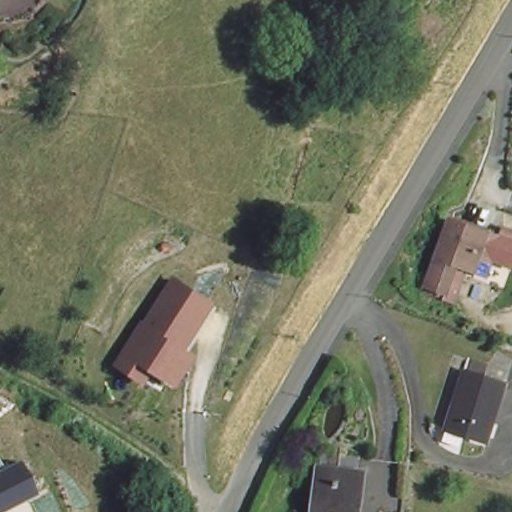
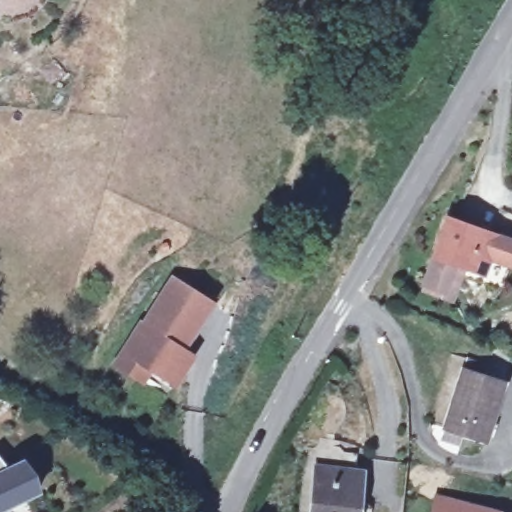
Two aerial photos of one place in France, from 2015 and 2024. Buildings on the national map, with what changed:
unchanged [(502,234),(493,264),(483,261),(476,276),(465,273),(424,261),(442,214),(502,234)]
unchanged [(465,273),(457,306),(417,296),(424,261),(465,273)]
unchanged [(178,388),(147,373),(141,383),(112,367),(167,277),(215,301),(186,348),(198,353),(178,388)]
unchanged [(499,380),(479,437),(439,424),(458,366),(499,380)]
unchanged [(0,512),(0,458),(8,466),(23,459),(40,493),(3,512),(0,512)]
unchanged [(359,510),(358,512),(315,512),(319,474),(321,474),(324,458),(350,461),(348,477),(356,478),(352,509),(359,510)]
new [(503,509),(503,511),(506,512),(430,512),(435,492),(503,509)]

